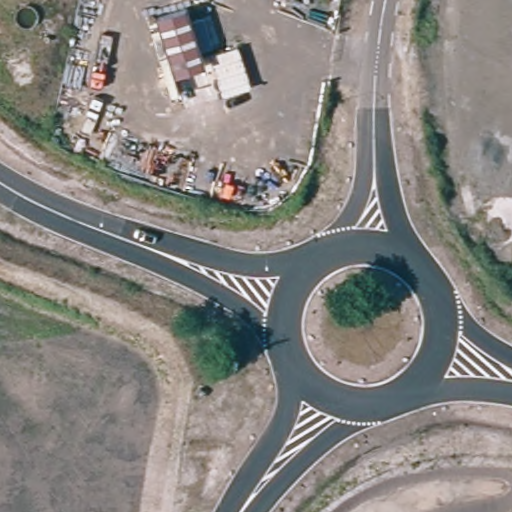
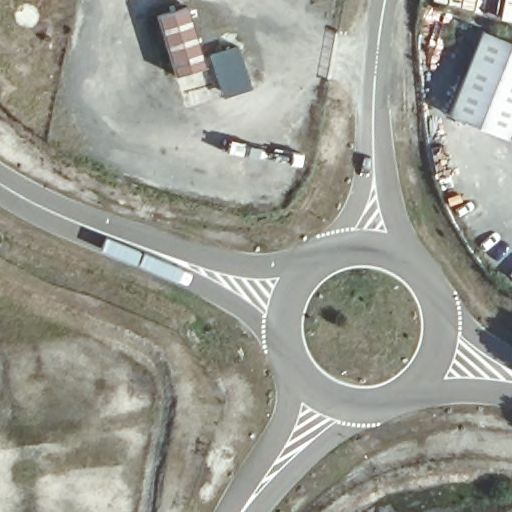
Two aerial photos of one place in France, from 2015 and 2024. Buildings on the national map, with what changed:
unchanged [(207,72),(177,81),(159,21),(189,12),(207,72)]
new [(482,31),(512,42),(512,128),(507,140),(448,115),(482,31)]
unchanged [(254,94),(225,102),(212,62),(241,52),(254,94)]

